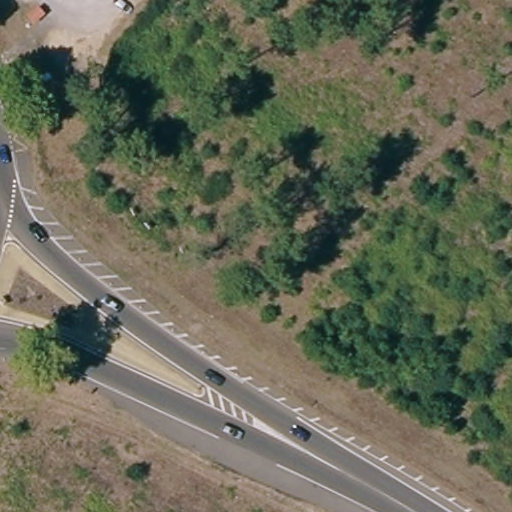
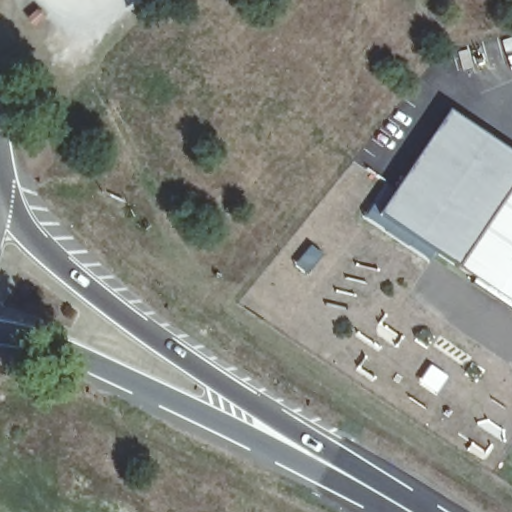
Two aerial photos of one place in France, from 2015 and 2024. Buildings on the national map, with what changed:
new [(382,215),(450,109),(506,149),(438,250),(382,215)]
new [(512,301),(438,250),(506,149),(512,153),(512,301)]

